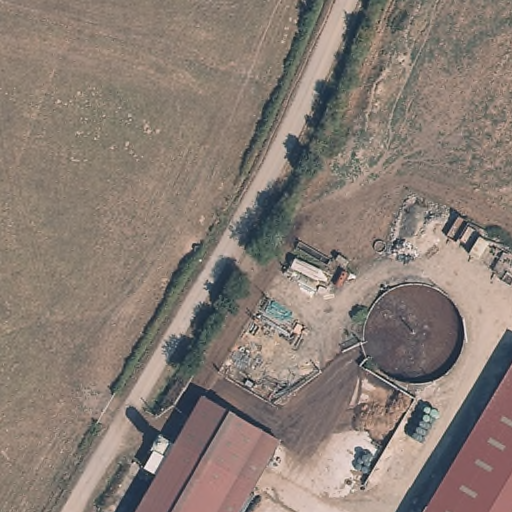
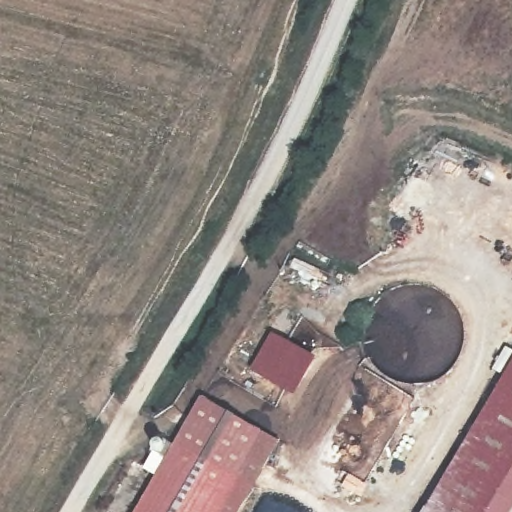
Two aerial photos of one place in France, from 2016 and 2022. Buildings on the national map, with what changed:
new [(272,332),(317,358),(295,396),(251,371),(272,332)]
unchanged [(424,512),(512,365),(512,512),(424,512)]
unchanged [(205,403),(263,439),(238,480),(180,445),(205,403)]
unchanged [(263,439),(277,449),(240,512),(219,512),(238,480),(263,439)]
unchanged [(238,480),(219,512),(138,512),(180,445),(238,480)]

